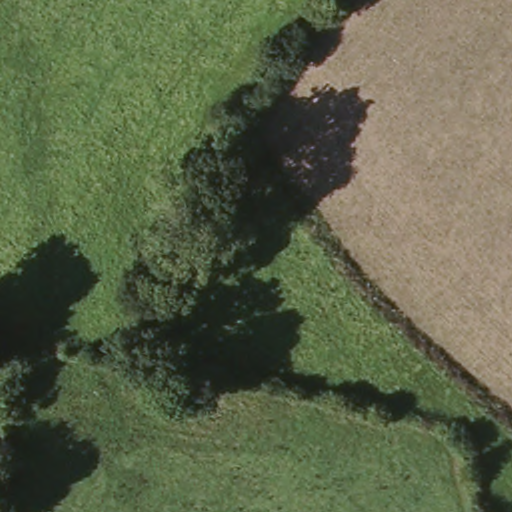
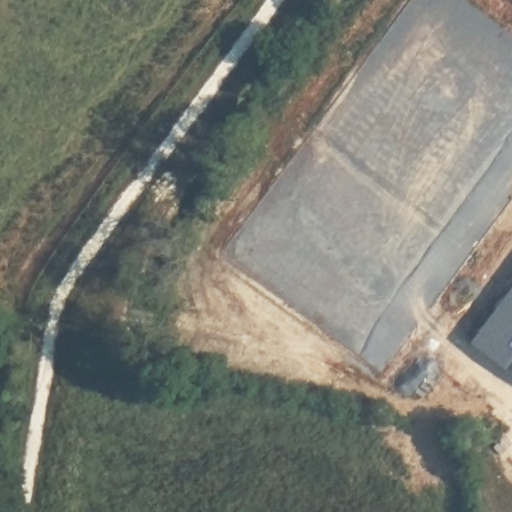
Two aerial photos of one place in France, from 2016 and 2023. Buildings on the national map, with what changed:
new [(512,281),(512,367),(472,333),(512,281)]

